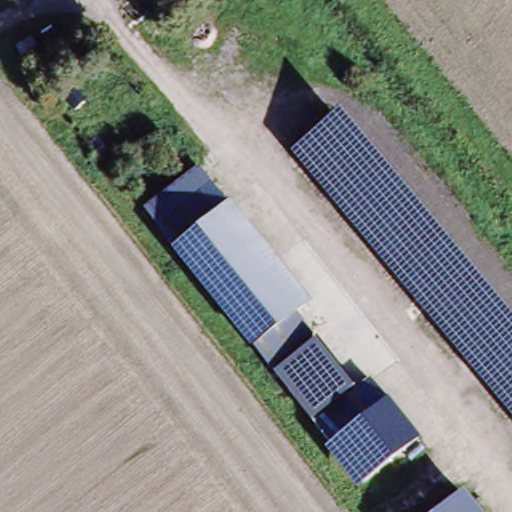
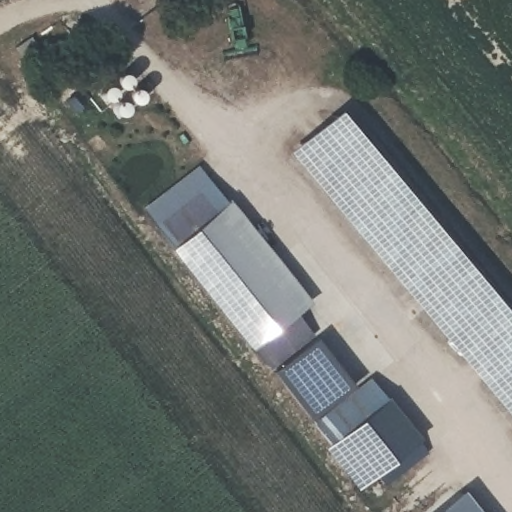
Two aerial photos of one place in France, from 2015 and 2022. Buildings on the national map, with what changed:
unchanged [(512,417),(336,202),(330,207),(291,160),(334,125),(512,343),(512,417)]
unchanged [(203,195),(306,324),(304,326),(259,363),(153,232),(203,195)]
unchanged [(349,385),(304,421),(259,363),(304,326),(349,385)]
unchanged [(349,385),(353,381),(416,460),(399,471),(384,455),(353,482),(304,421),(349,385)]
unchanged [(464,498),(476,512),(446,512),(464,498)]

